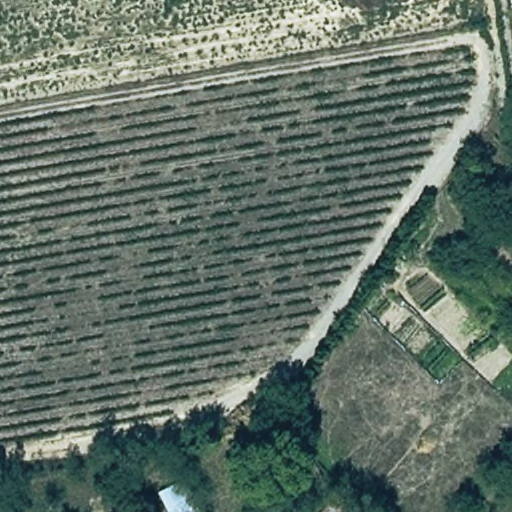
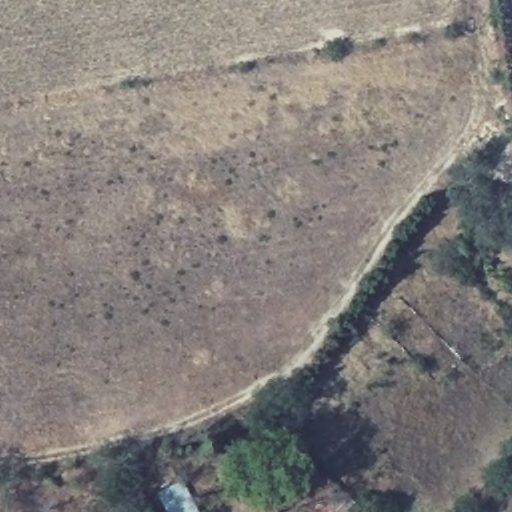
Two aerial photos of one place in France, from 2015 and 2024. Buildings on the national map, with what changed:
unchanged [(198,512),(163,512),(154,497),(181,482),(198,512)]

